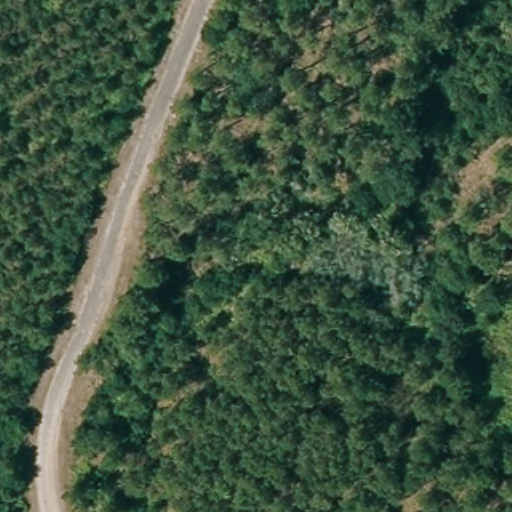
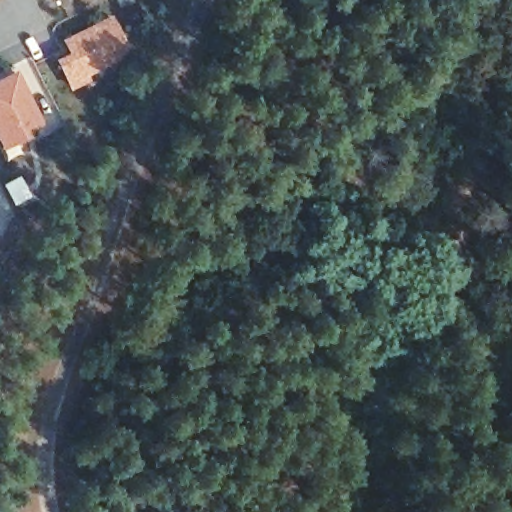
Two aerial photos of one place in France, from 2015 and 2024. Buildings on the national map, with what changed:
new [(71,88),(59,63),(71,56),(65,41),(110,18),(125,47),(117,60),(85,75),(87,81),(71,88)]
new [(0,141),(0,80),(17,71),(44,123),(31,127),(30,135),(4,148),(0,141)]

